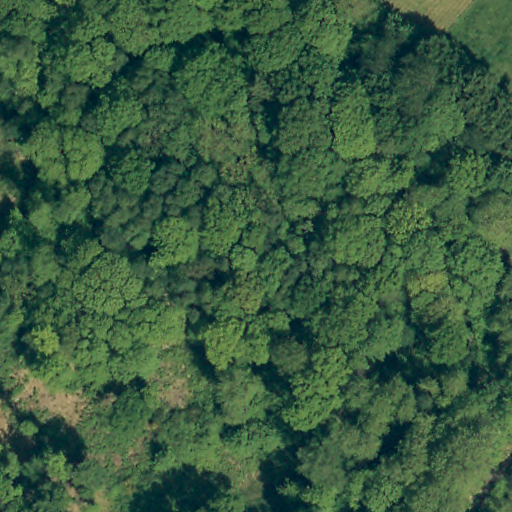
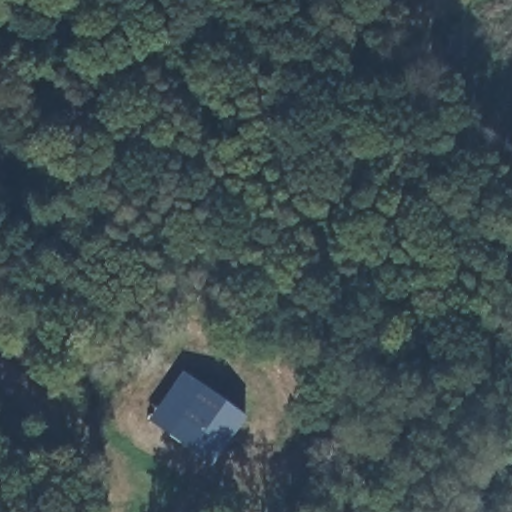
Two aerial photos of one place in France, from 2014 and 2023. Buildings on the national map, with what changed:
new [(184,372),(244,416),(210,465),(147,419),(184,372)]

